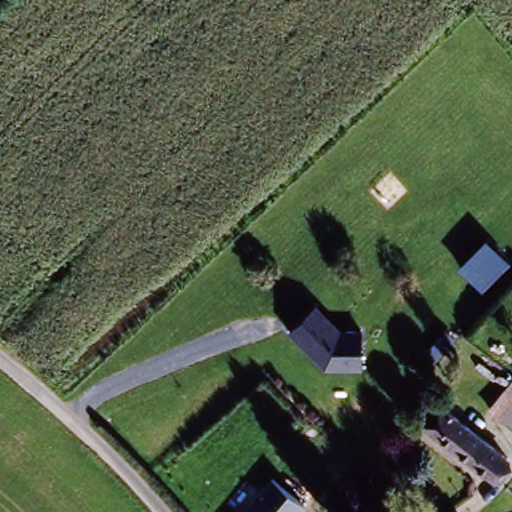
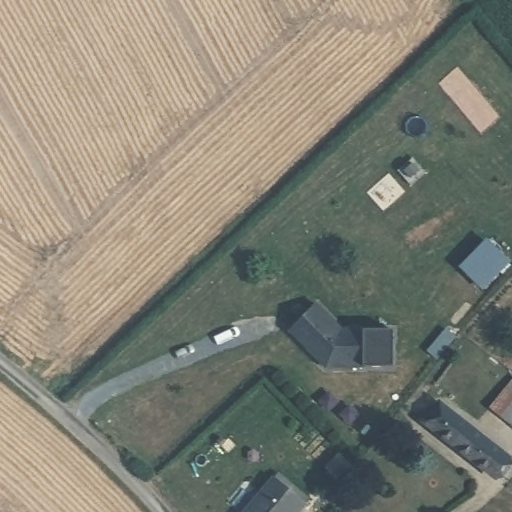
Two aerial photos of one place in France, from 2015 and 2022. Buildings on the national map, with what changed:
unchanged [(510,261),(488,290),(461,267),(482,238),(510,261)]
unchanged [(338,328),(362,328),(363,367),(325,368),(290,333),(316,307),(338,328)]
new [(391,331),(392,367),(363,367),(362,332),(391,331)]
unchanged [(510,377),(512,378),(512,426),(485,408),(510,377)]
unchanged [(497,479),(426,427),(440,409),(510,461),(497,479)]
unchanged [(272,478),(305,506),(300,512),(244,512),(272,478)]

